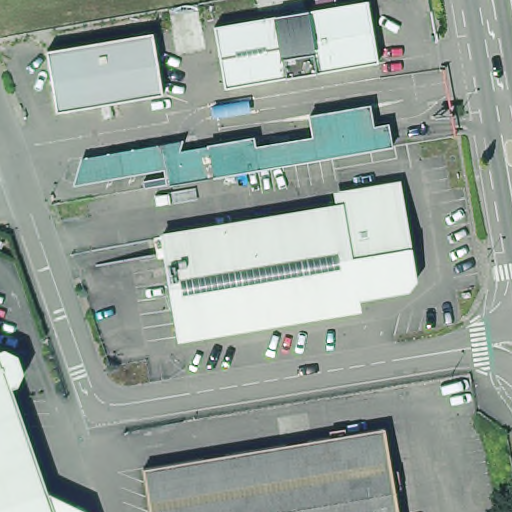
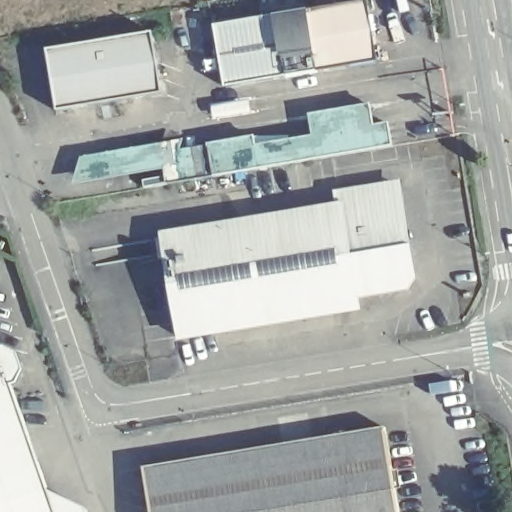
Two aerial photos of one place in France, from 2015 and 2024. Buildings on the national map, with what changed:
unchanged [(208,21),(328,0),(364,0),(373,54),(218,81),(208,21)]
unchanged [(163,7),(193,2),(200,48),(171,53),(163,7)]
unchanged [(40,46),(145,27),(157,89),(50,107),(40,46)]
unchanged [(172,179),(176,160),(180,145),(255,132),(257,141),(316,131),(312,110),(372,100),(375,121),(390,118),(395,141),(172,179)]
unchanged [(176,160),(75,177),(82,151),(179,136),(180,145),(176,160)]
unchanged [(333,202),(331,191),(391,181),(395,202),(405,265),(403,267),(392,282),(348,289),(350,302),(170,332),(167,307),(155,242),(154,232),(333,202)]
unchanged [(15,354),(19,363),(22,371),(17,380),(15,384),(9,386),(30,447),(0,459),(0,348),(2,347),(15,354)]
unchanged [(397,512),(269,512),(259,452),(384,432),(397,512)]
unchanged [(0,459),(30,447),(37,467),(0,482),(0,459)]
unchanged [(147,512),(140,472),(259,452),(269,512),(147,512)]
unchanged [(45,492),(47,494),(0,510),(0,482),(37,467),(45,492)]
unchanged [(84,509),(84,512),(0,512),(0,510),(47,494),(45,492),(48,492),(84,509)]

